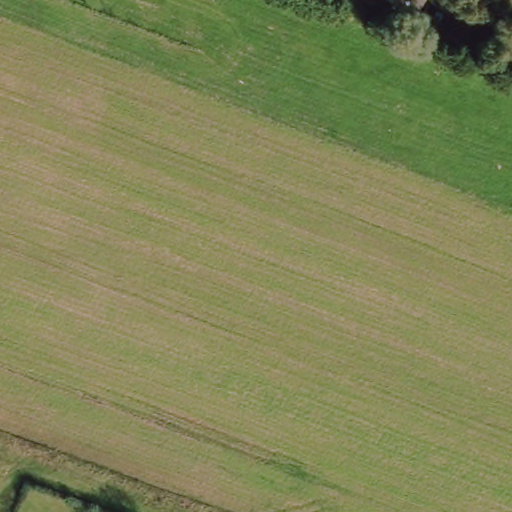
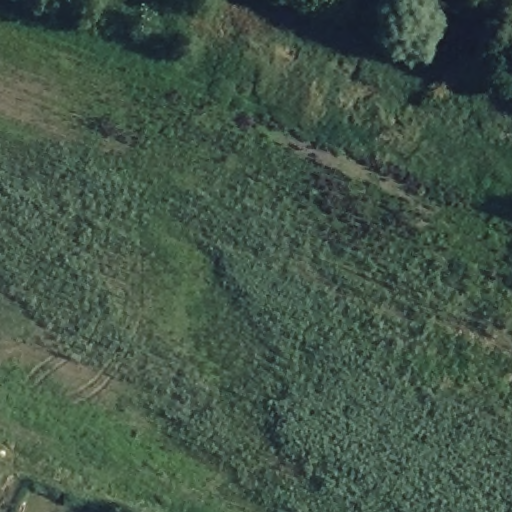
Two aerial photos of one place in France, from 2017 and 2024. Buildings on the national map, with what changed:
unchanged [(404,10),(384,0),(409,0),(404,10)]

